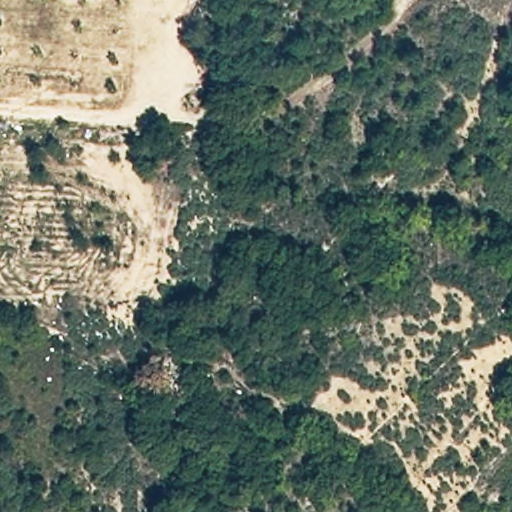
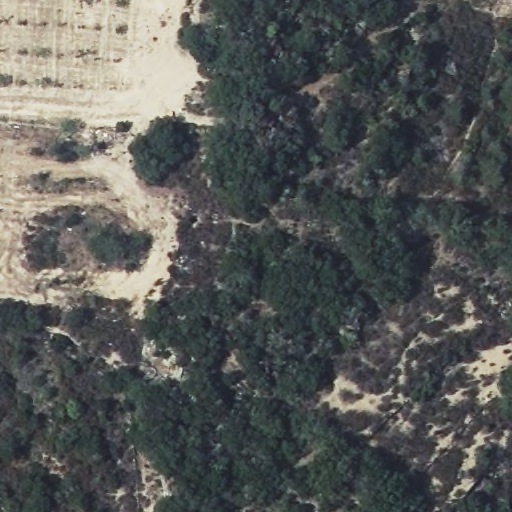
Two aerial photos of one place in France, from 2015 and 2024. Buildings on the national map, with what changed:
unchanged [(191,89),(209,90),(208,114),(191,111),(191,89)]

